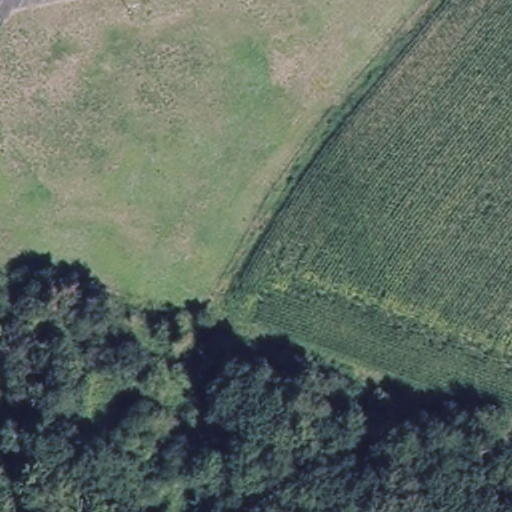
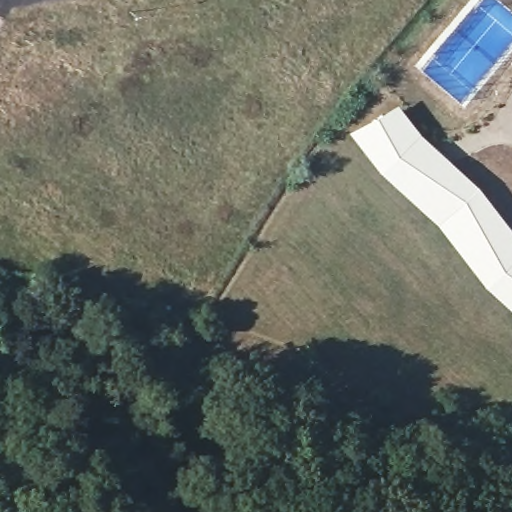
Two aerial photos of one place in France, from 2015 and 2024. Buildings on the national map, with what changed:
new [(392,112),(413,138),(470,191),(512,245),(512,299),(489,278),(442,216),(385,164),(359,131),(392,112)]

